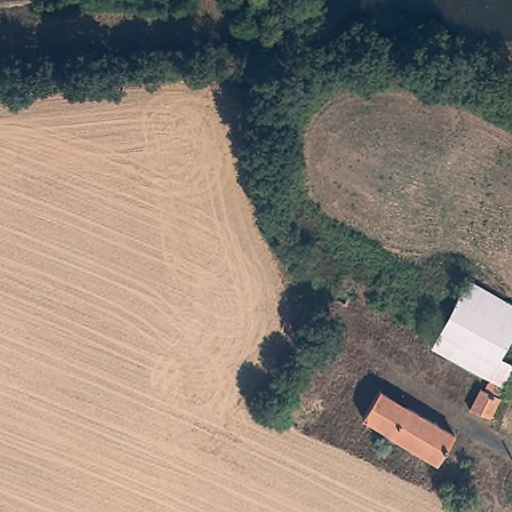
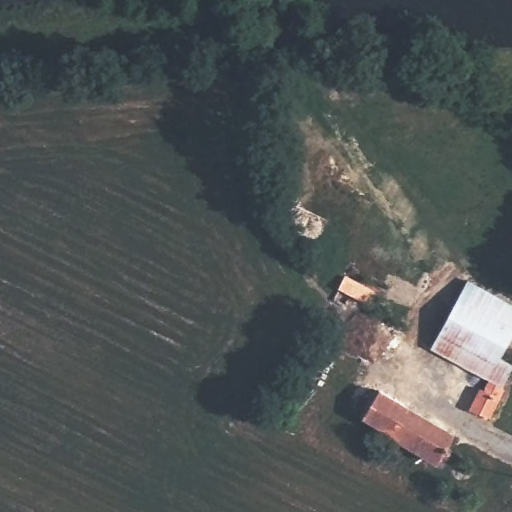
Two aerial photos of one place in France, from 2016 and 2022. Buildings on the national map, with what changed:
unchanged [(382,315),(338,293),(344,282),(348,276),(390,299),(384,311),(382,315)]
unchanged [(477,408),(491,381),(433,347),(472,283),(512,307),(512,340),(504,353),(512,357),(512,374),(508,381),(512,384),(512,392),(496,420),(477,408)]
unchanged [(364,428),(383,395),(411,411),(392,442),(364,428)]
unchanged [(447,450),(438,466),(392,442),(411,411),(460,438),(447,450)]

